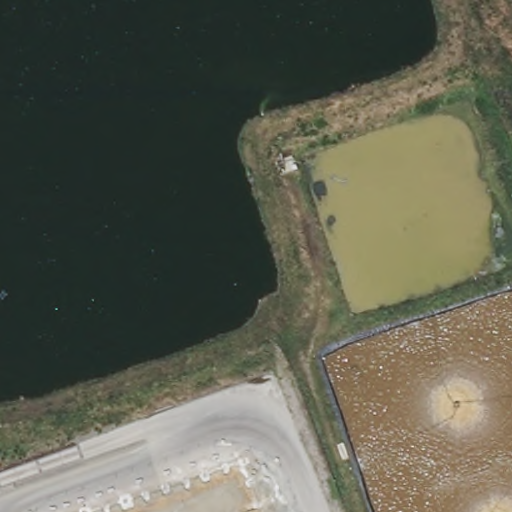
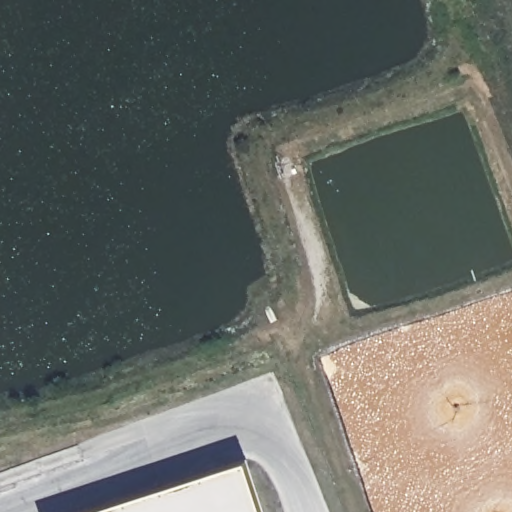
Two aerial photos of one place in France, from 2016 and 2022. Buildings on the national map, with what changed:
new [(246,460),(263,512),(84,512),(246,460)]

